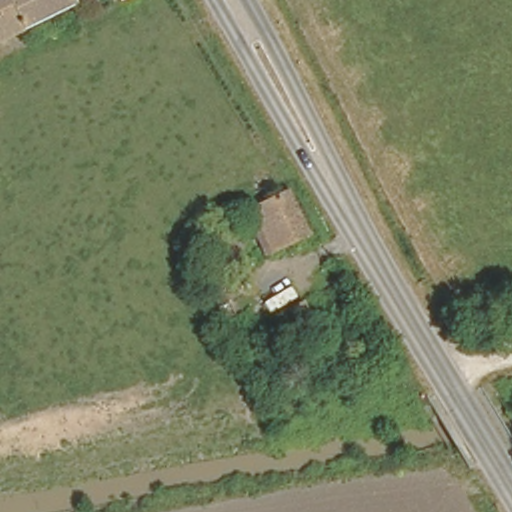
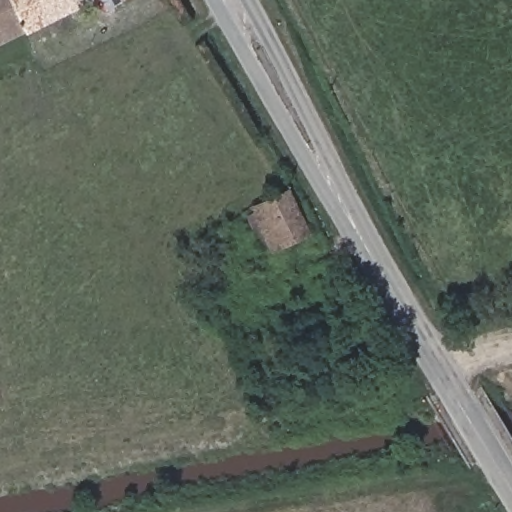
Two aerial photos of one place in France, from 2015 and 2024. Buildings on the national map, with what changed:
unchanged [(0,55),(0,0),(10,0),(30,40),(0,55)]
unchanged [(10,0),(79,0),(85,13),(30,40),(10,0)]
unchanged [(275,242),(255,206),(285,191),(306,228),(275,242)]
unchanged [(221,279),(200,240),(223,229),(244,267),(221,279)]
unchanged [(300,330),(289,307),(307,299),(318,323),(300,330)]
unchanged [(475,312),(512,311),(512,334),(477,336),(475,312)]

